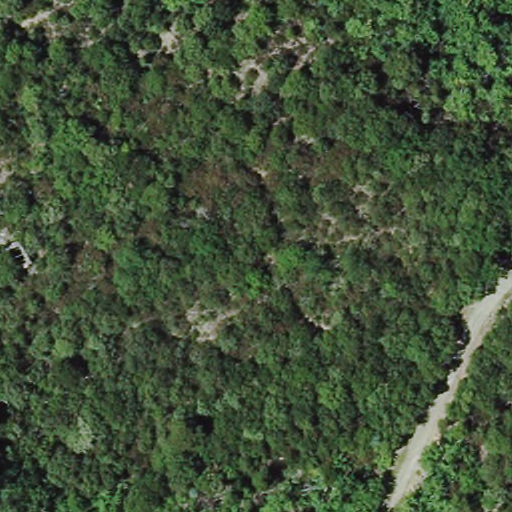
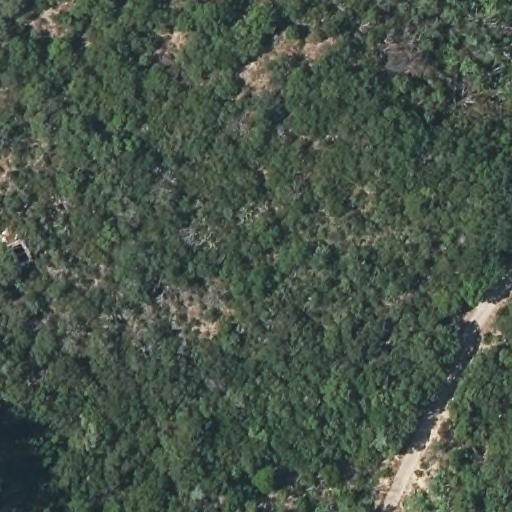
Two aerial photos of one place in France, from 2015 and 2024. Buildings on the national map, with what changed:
unchanged [(28,236),(37,261),(17,269),(7,248),(28,236)]

